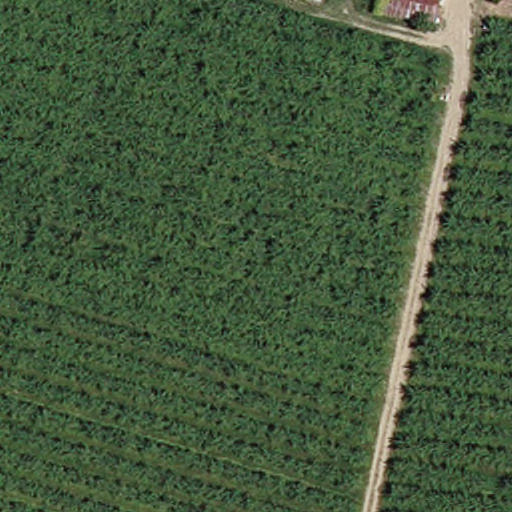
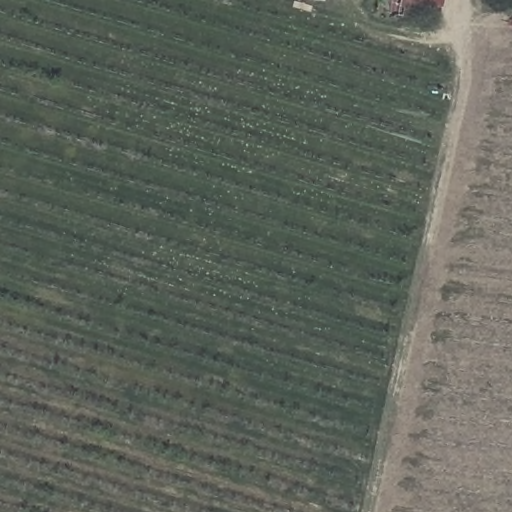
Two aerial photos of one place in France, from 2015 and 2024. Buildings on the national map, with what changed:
unchanged [(325,1),(317,0),(326,0),(325,1)]
unchanged [(421,0),(444,0),(443,4),(421,0)]

